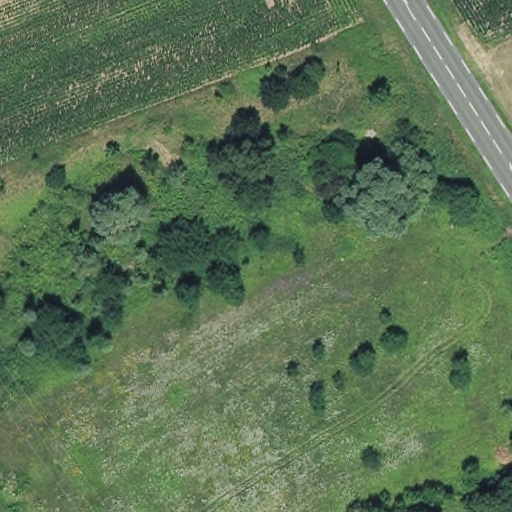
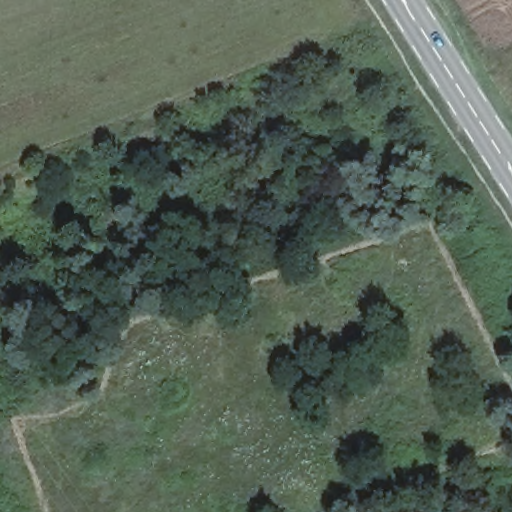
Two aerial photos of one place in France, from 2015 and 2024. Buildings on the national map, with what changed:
[]

